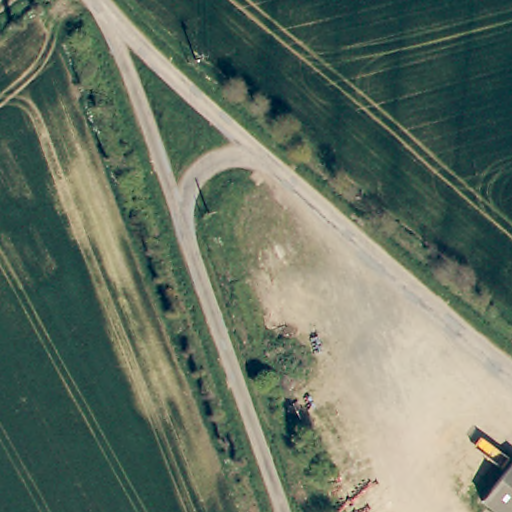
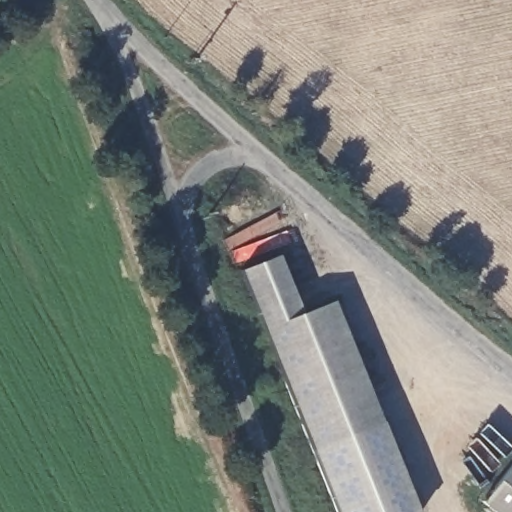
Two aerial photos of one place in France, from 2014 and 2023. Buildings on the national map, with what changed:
new [(277,256),(302,313),(333,302),(416,512),(333,512),(238,272),(277,256)]
unchanged [(512,458),(512,512),(488,512),(474,500),(511,457),(512,458)]

